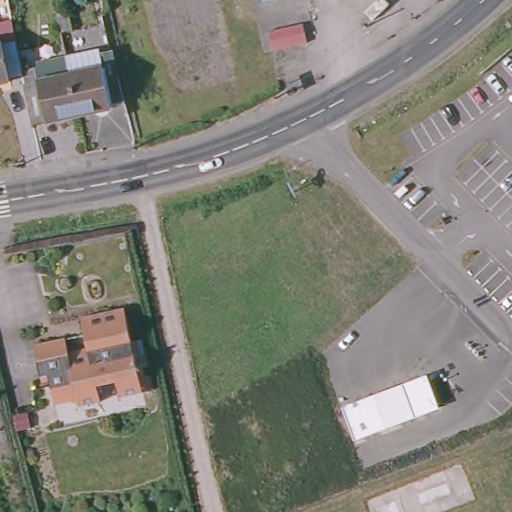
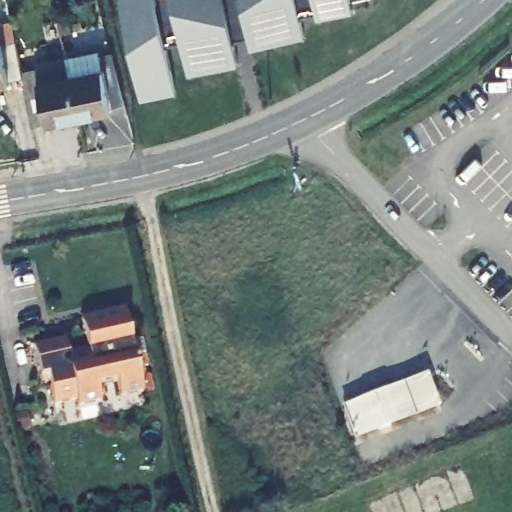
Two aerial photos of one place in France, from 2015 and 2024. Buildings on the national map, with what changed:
new [(317,20),(316,15),(302,19),(305,37),(251,49),(248,39),(235,41),(238,66),(187,75),(182,44),(167,47),(176,94),(140,101),(120,0),(350,0),(353,12),(317,20)]
demolished [(262,0),(277,0),(263,3),(262,0)]
unchanged [(68,14),(72,30),(61,33),(57,16),(68,14)]
unchanged [(12,20),(24,77),(10,81),(10,82),(0,84),(0,23),(12,20)]
demolished [(305,34),(307,44),(273,51),(271,41),(305,34)]
unchanged [(125,103),(111,106),(111,109),(79,116),(73,91),(71,80),(66,57),(99,50),(101,55),(113,53),(125,103)]
unchanged [(24,86),(25,85),(38,83),(35,69),(39,68),(38,62),(66,57),(71,80),(73,91),(79,116),(47,123),(47,122),(33,125),(32,125),(24,86)]
unchanged [(153,390),(143,392),(121,397),(117,382),(98,387),(101,402),(78,407),(77,400),(55,405),(50,381),(42,383),(41,377),(34,346),(65,339),(68,352),(88,348),(81,318),(124,309),(132,342),(142,340),(148,366),(143,367),(145,377),(150,376),(153,390)]
unchanged [(343,407),(428,376),(441,408),(355,440),(343,407)]

